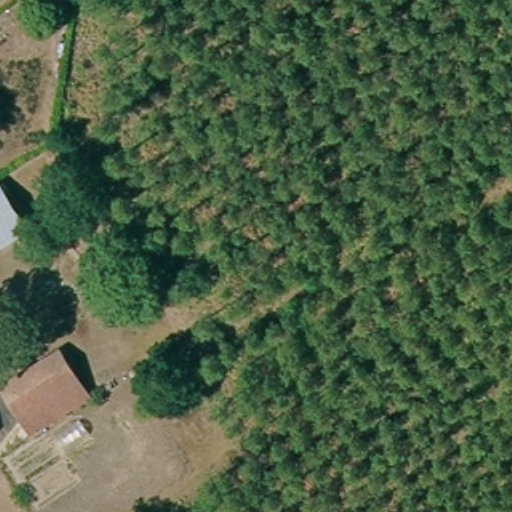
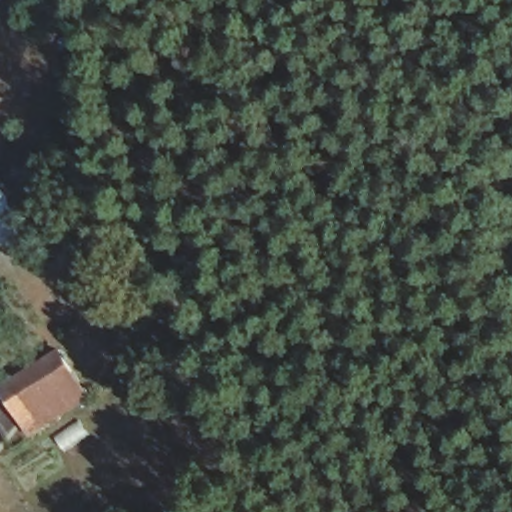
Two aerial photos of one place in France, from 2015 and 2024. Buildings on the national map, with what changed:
unchanged [(0,187),(1,186),(29,229),(0,247),(0,187)]
unchanged [(35,435),(5,388),(62,352),(92,400),(35,435)]

